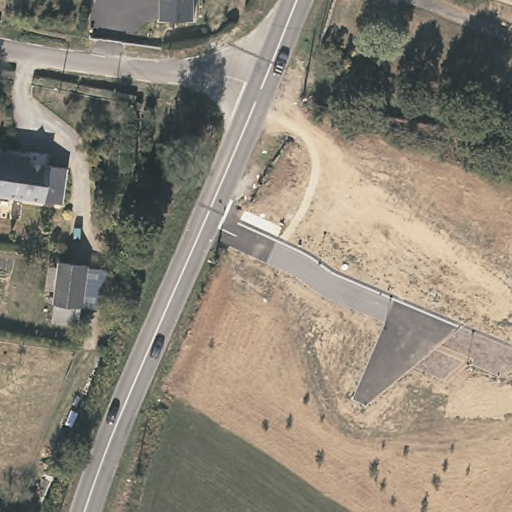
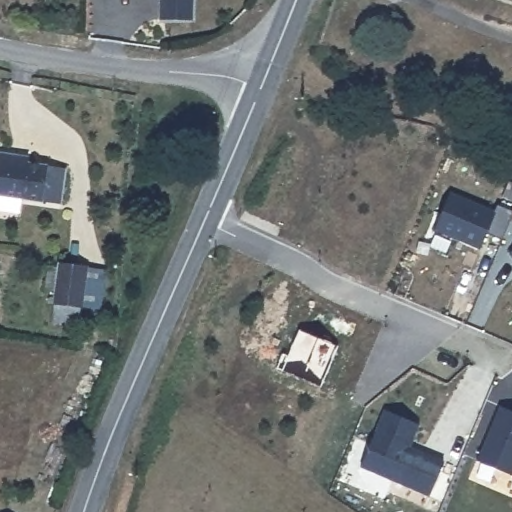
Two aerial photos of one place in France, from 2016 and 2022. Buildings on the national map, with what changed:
unchanged [(160,0),(193,0),(193,19),(160,19),(160,0)]
unchanged [(0,196),(0,151),(19,153),(32,155),(31,162),(66,167),(61,204),(0,196)]
new [(479,246),(436,229),(450,192),(495,209),(479,246)]
new [(509,251),(512,249),(512,255),(509,251)]
unchanged [(56,310),(58,293),(64,251),(91,253),(86,296),(85,312),(56,310)]
new [(479,458),(498,405),(512,411),(512,472),(479,458)]
new [(358,464),(381,410),(415,424),(407,448),(441,461),(428,494),(358,464)]

